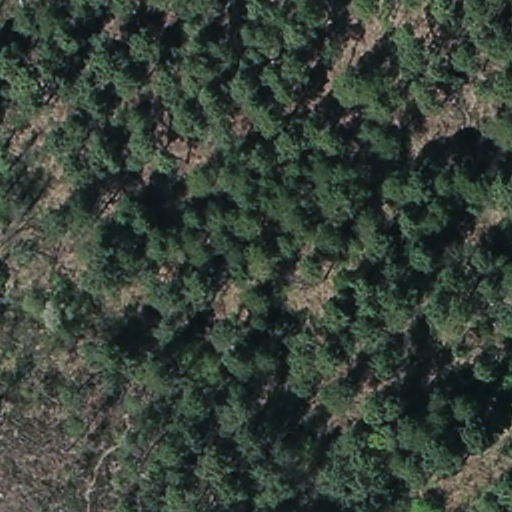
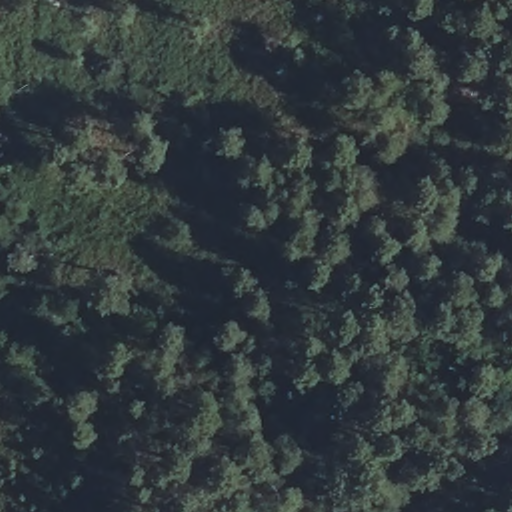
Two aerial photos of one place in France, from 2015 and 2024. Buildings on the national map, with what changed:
[]

